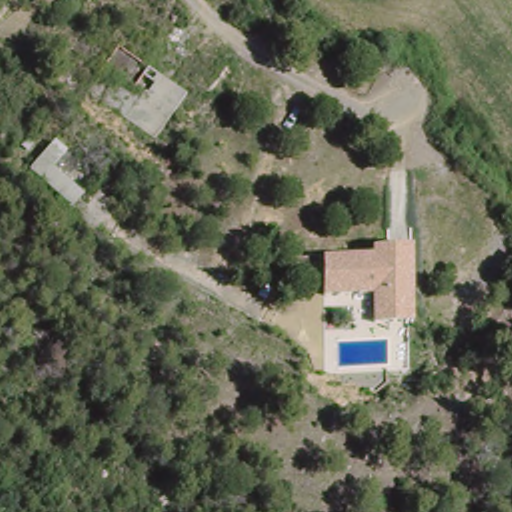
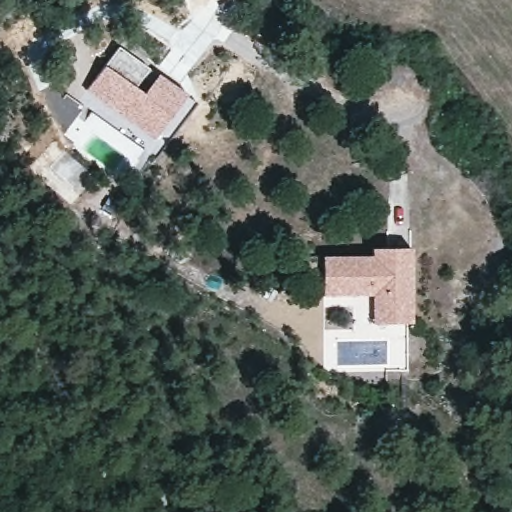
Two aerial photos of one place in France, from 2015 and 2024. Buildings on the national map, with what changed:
new [(149,66),(176,87),(186,95),(153,137),(86,86),(119,43),(149,66)]
unchanged [(27,172),(49,148),(63,155),(54,167),(74,187),(62,201),(27,172)]
unchanged [(377,255),(377,247),(417,248),(417,322),(378,323),(378,297),(328,296),(327,255),(377,255)]
demolished [(327,370),(334,353),(383,372),(376,390),(327,370)]

